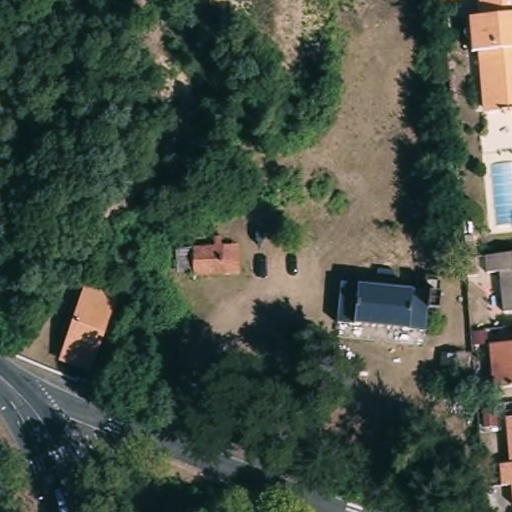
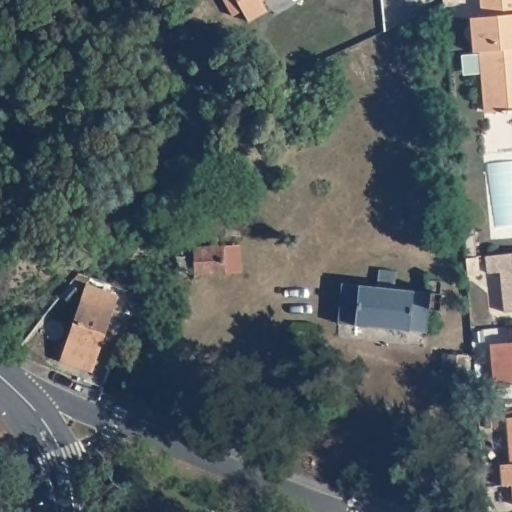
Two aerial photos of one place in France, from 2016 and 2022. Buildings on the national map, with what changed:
new [(266,11),(248,22),(241,11),(232,16),(222,0),(261,0),(260,0),(266,11)]
unchanged [(480,17),(479,0),(512,0),(512,26),(470,29),(469,18),(480,17)]
unchanged [(472,51),(470,29),(512,26),(512,114),(508,115),(504,115),(499,113),(488,113),(481,113),(480,99),(475,51),(472,51)]
unchanged [(448,235),(444,190),(460,188),(463,235),(448,235)]
unchanged [(239,278),(192,281),(192,275),(177,276),(175,254),(212,251),(211,242),(220,241),(220,251),(238,250),(239,278)]
unchanged [(512,311),(506,311),(503,270),(490,271),(489,254),(512,252),(512,311)]
unchanged [(471,274),(470,255),(481,255),(483,273),(471,274)]
unchanged [(376,277),(377,270),(393,272),(392,278),(391,287),(425,290),(427,280),(440,281),(437,311),(427,309),(424,333),(337,324),(340,283),(376,286),(376,277)]
unchanged [(83,362),(66,356),(90,283),(119,294),(100,354),(95,366),(83,362)]
unchanged [(489,346),(512,345),(512,389),(493,390),(489,346)]
unchanged [(466,383),(437,380),(440,353),(469,356),(466,383)]
unchanged [(499,465),(510,463),(507,418),(512,418),(512,485),(501,485),(499,465)]

